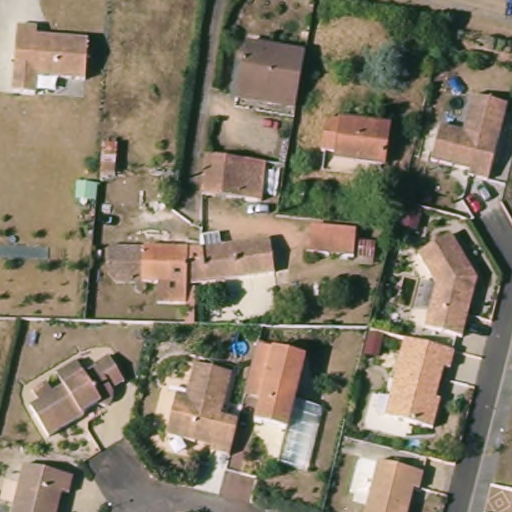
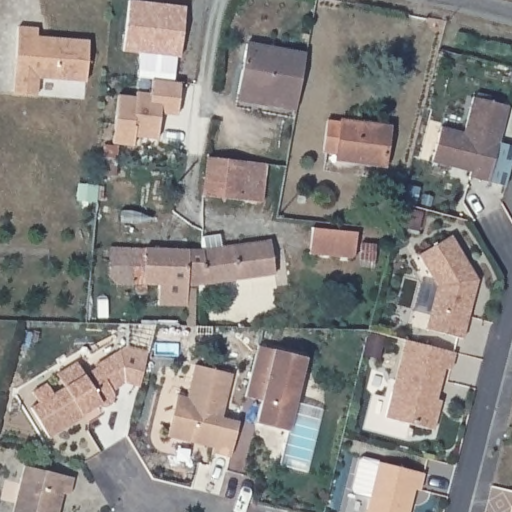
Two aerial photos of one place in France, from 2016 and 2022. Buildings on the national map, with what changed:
new [(142,0),(186,5),(180,55),(124,48),(129,0),(142,0)]
unchanged [(46,75),(39,74),(37,91),(14,89),(21,22),(40,24),(39,33),(49,34),(55,34),(91,38),(87,78),(46,75)]
unchanged [(297,54),(290,110),(270,107),(271,98),(232,93),(239,47),(297,54)]
new [(119,94),(137,96),(137,91),(152,92),(154,77),(182,81),(177,113),(161,111),(158,138),(135,135),(134,144),(114,142),(119,94)]
unchanged [(429,160),(438,125),(462,131),(471,95),(506,105),(486,180),(466,175),(467,170),(450,165),(429,160)]
unchanged [(378,169),(339,166),(331,164),(333,153),(317,151),(321,120),(345,123),(388,128),(384,170),(378,169)]
unchanged [(117,186),(103,184),(105,163),(106,142),(120,143),(117,186)]
unchanged [(263,163),(260,202),(199,197),(202,158),(263,163)]
unchanged [(413,193),(405,191),(408,177),(417,180),(413,193)]
unchanged [(95,196),(81,195),(82,182),(96,183),(95,196)]
unchanged [(421,204),(417,220),(398,216),(403,199),(421,204)]
unchanged [(458,338),(422,328),(432,285),(414,254),(447,234),(473,279),(470,293),(467,302),(458,338)]
unchanged [(361,239),(359,262),(337,260),(316,258),(317,235),(340,237),(361,239)]
unchanged [(186,287),(187,309),(155,305),(155,289),(102,283),(105,247),(197,248),(267,241),(275,275),(186,287)]
unchanged [(431,406),(426,428),(377,416),(397,339),(447,351),(442,368),(436,367),(428,398),(433,399),(431,406)]
unchanged [(241,384),(251,343),(300,356),(288,401),(281,430),(280,429),(250,422),(255,399),(238,395),(241,384)]
unchanged [(89,367),(102,358),(117,385),(105,392),(106,394),(106,396),(106,397),(106,399),(106,400),(106,402),(105,403),(105,404),(104,405),(102,406),(102,407),(101,408),(99,408),(97,409),(96,409),(94,408),(92,408),(91,407),(90,407),(76,415),(77,418),(41,438),(23,408),(31,403),(25,392),(40,384),(46,395),(57,388),(50,375),(70,363),(77,376),(90,369),(89,367)]
unchanged [(161,434),(171,393),(181,395),(189,363),(226,372),(215,416),(232,420),(223,455),(205,450),(206,445),(189,441),(161,434)]
unchanged [(317,408),(302,470),(272,463),(280,429),(281,430),(288,401),(317,408)]
unchanged [(371,462),(416,474),(412,490),(407,489),(402,504),(401,512),(358,512),(371,462)]
unchanged [(52,494),(48,512),(3,512),(15,466),(64,479),(60,495),(52,494)]

